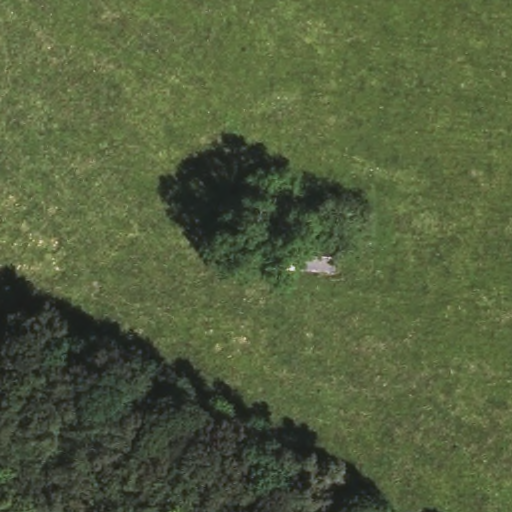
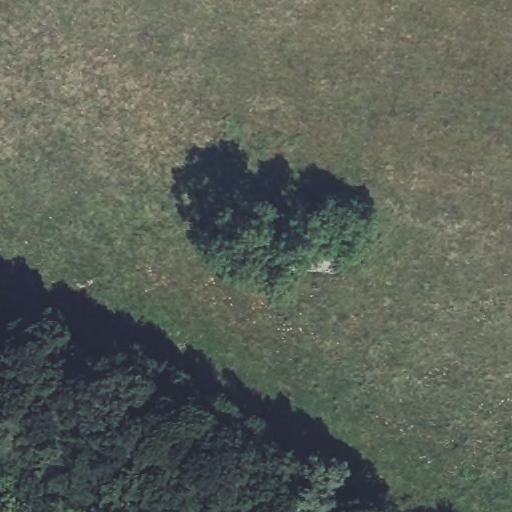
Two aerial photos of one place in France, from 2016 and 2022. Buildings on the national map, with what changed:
unchanged [(340,232),(339,270),(272,268),(274,229),(340,232)]

